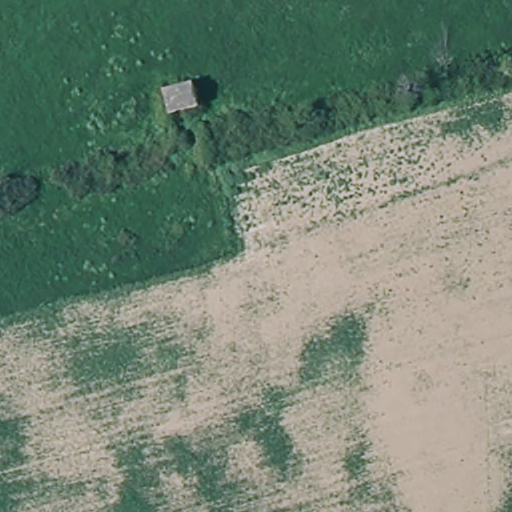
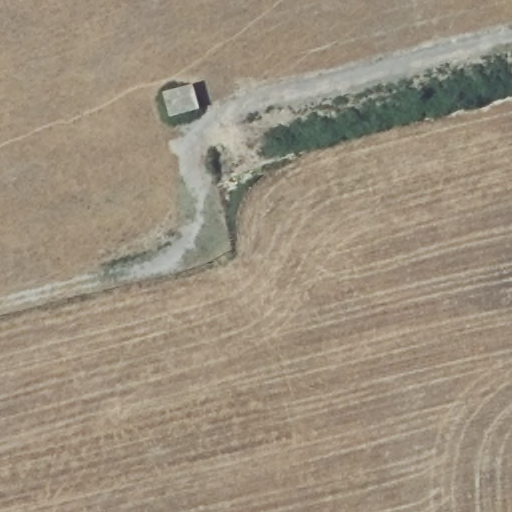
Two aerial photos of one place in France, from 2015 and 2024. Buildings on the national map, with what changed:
unchanged [(192,113),(164,121),(158,97),(186,90),(192,113)]

